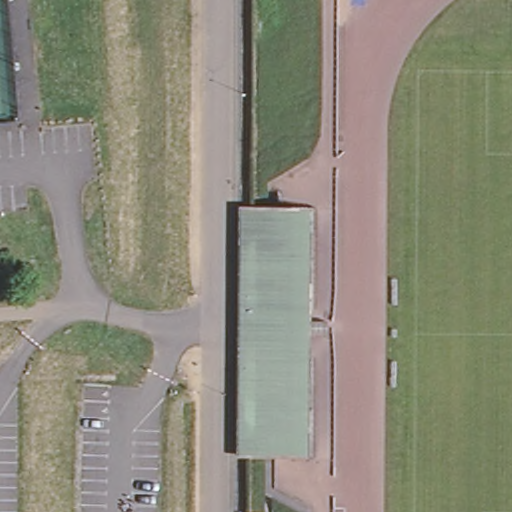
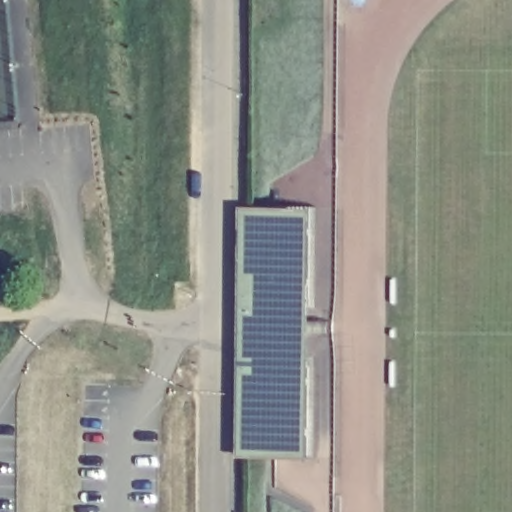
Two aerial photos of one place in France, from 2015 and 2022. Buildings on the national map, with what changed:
unchanged [(307,204),(305,305),(292,305),(292,318),(318,318),(318,330),(292,330),(291,354),(305,355),(305,455),(279,455),(234,454),(234,451),(235,350),(235,327),(236,237),(236,203),(242,204),(307,204)]

